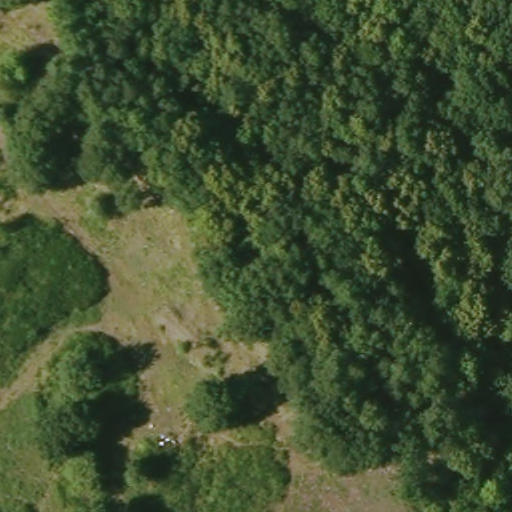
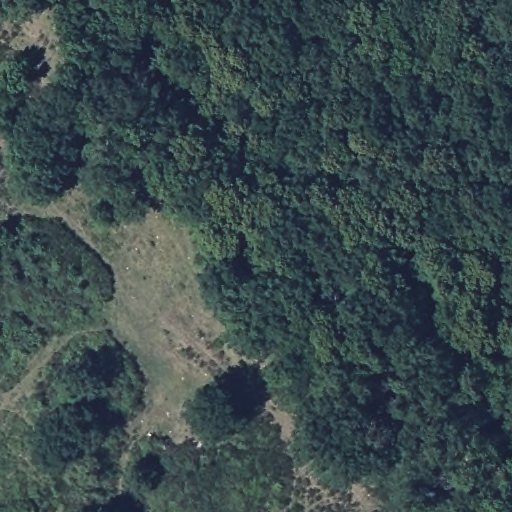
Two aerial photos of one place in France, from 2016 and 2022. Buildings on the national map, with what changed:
unchanged [(178,470),(168,435),(176,433),(178,440),(184,438),(182,430),(190,428),(193,436),(210,432),(217,453),(178,470)]

